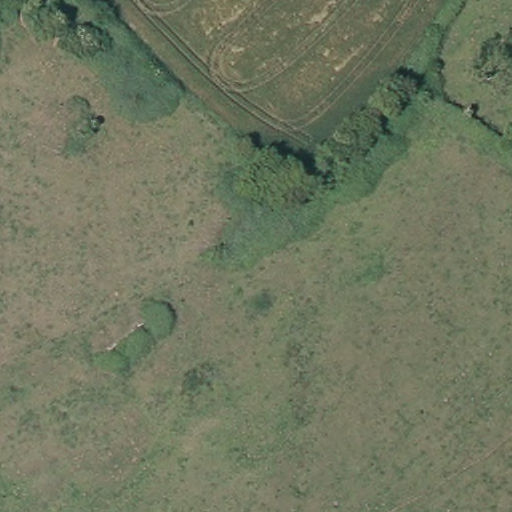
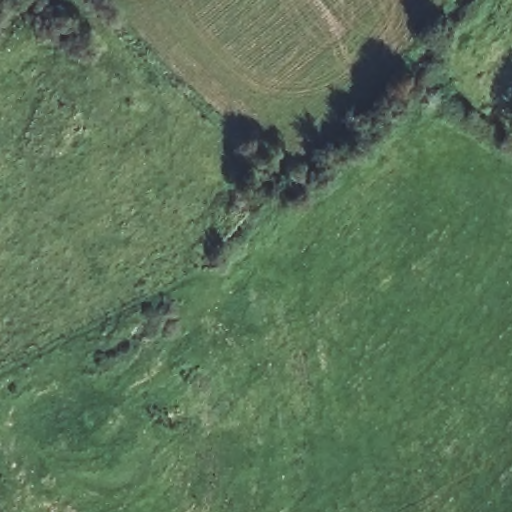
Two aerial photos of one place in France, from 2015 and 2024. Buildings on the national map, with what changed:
[]

